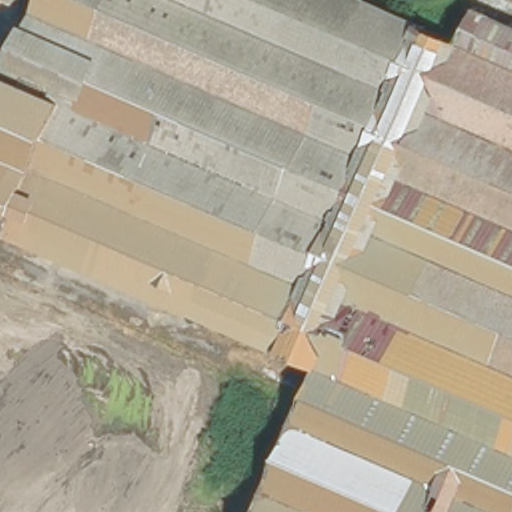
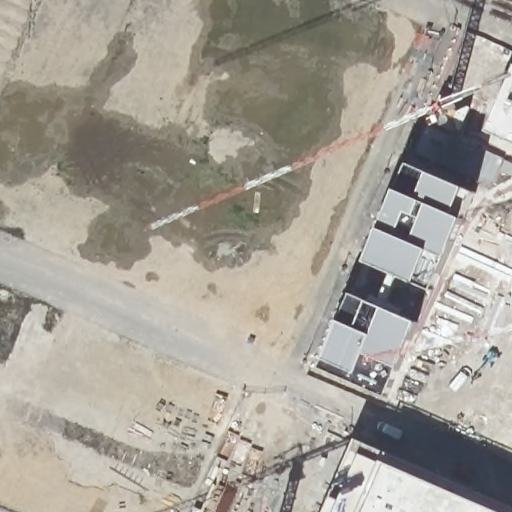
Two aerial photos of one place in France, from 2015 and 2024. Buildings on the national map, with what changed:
demolished [(316,367),(7,236),(0,233),(0,85),(5,75),(37,0),(375,0),(461,37),(475,4),(512,20),(512,512),(255,512),(316,367)]
new [(512,79),(512,143),(489,132),(512,79)]
new [(505,160),(493,186),(416,153),(428,125),(505,160)]
new [(465,220),(448,258),(433,291),(420,323),(389,395),(321,367),(341,321),(353,294),(367,261),(381,230),(397,190),(409,164),(431,174),(465,189),(477,194),(465,220)]
new [(356,438),(512,506),(512,512),(324,512),(356,438)]

